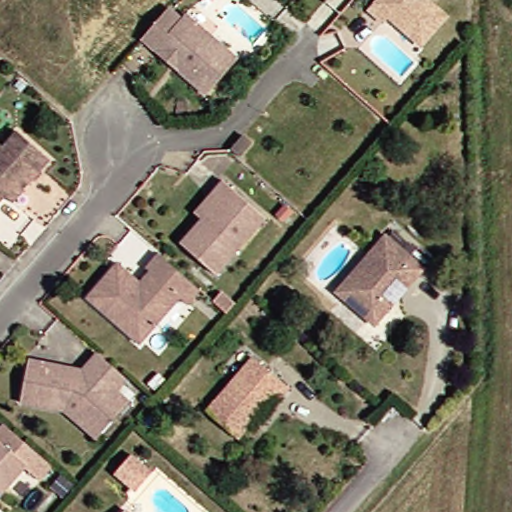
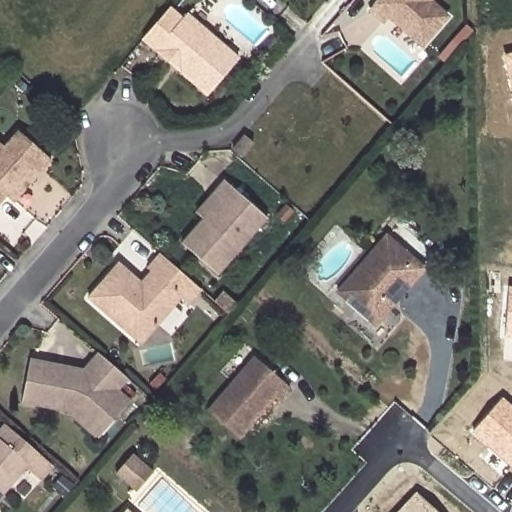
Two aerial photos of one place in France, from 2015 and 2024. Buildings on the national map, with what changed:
unchanged [(387,16),(382,22),(370,10),(379,0),(430,0),(429,1),(446,16),(430,36),(421,46),(387,16)]
unchanged [(142,34),(147,28),(170,2),(183,14),(187,9),(240,54),(209,89),(180,65),(156,45),(142,34)]
new [(505,54),(512,53),(512,93),(505,54)]
unchanged [(9,196),(0,206),(0,139),(7,146),(21,130),(54,159),(16,202),(9,196)]
unchanged [(252,143),(240,157),(232,150),(245,136),(252,143)]
unchanged [(215,275),(180,244),(201,219),(195,212),(207,197),(222,181),(265,218),(215,275)]
unchanged [(373,325),(335,292),(385,235),(422,268),(410,283),(388,308),(373,325)]
unchanged [(150,272),(146,268),(159,254),(200,290),(187,305),(180,298),(139,344),(86,297),(117,263),(140,283),(150,272)]
new [(505,338),(508,286),(512,287),(512,339),(505,338)]
unchanged [(80,421),(70,412),(25,403),(33,359),(86,369),(100,353),(130,379),(121,389),(134,401),(118,420),(101,439),(80,421)]
unchanged [(288,387),(277,400),(273,397),(236,437),(206,411),(252,357),(288,387)]
new [(471,432),(502,397),(512,406),(512,468),(471,432)]
unchanged [(0,442),(27,465),(0,496),(0,442)]
new [(437,512),(397,512),(415,492),(437,512)]
unchanged [(128,512),(124,512),(126,510),(128,512)]

